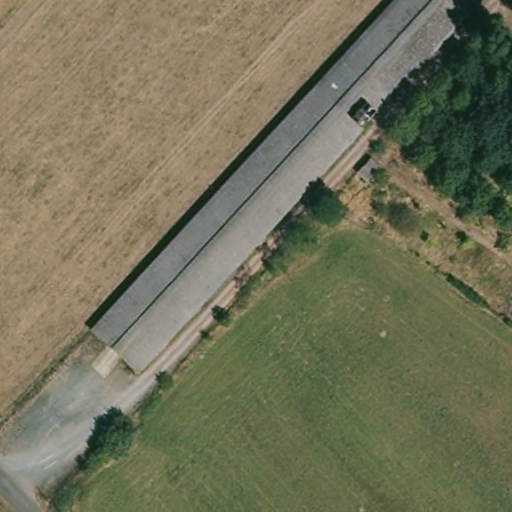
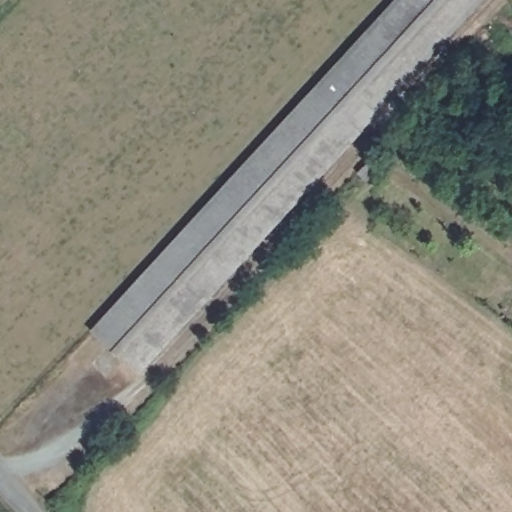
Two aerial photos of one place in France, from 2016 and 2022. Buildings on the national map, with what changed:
unchanged [(90,337),(398,0),(478,0),(134,377),(90,337)]

